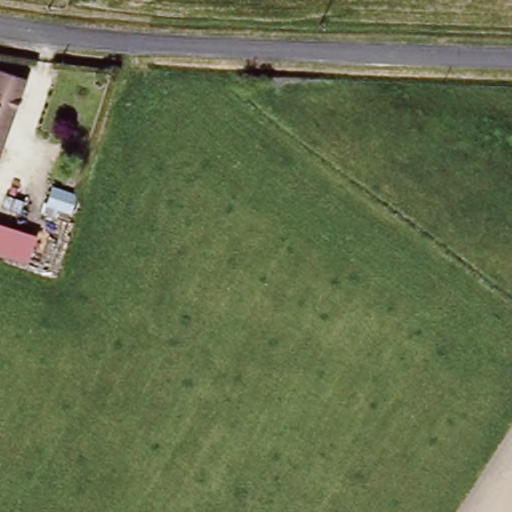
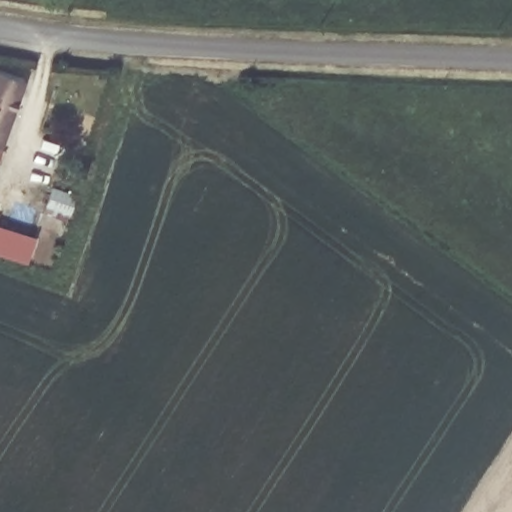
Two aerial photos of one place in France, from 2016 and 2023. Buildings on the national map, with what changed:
unchanged [(28,85),(0,158),(0,63),(32,75),(28,85)]
unchanged [(74,196),(68,214),(45,205),(51,187),(74,196)]
unchanged [(22,199),(17,211),(3,205),(7,193),(22,199)]
unchanged [(28,263),(0,254),(0,225),(37,236),(28,263)]

